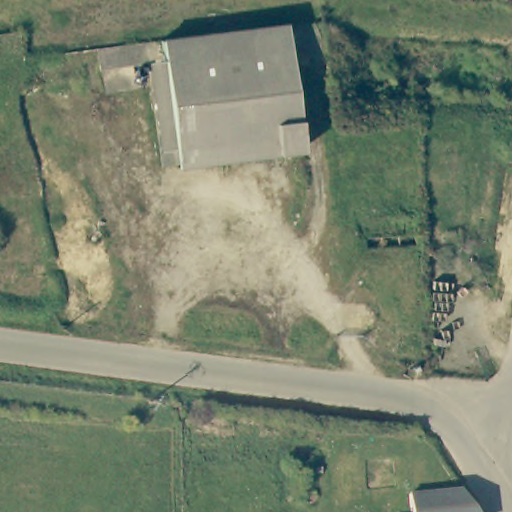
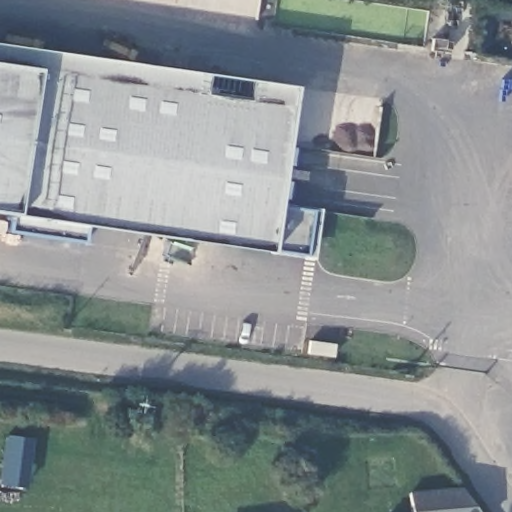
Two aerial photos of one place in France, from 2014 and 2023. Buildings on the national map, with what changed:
demolished [(302,148),(276,151),(273,134),(174,147),(162,57),(160,40),(236,30),(238,48),(287,41),(302,148)]
new [(294,86),(277,203),(311,209),(303,256),(270,250),(89,224),(85,241),(9,230),(12,213),(0,212),(0,44),(294,86)]
new [(32,436),(26,488),(0,485),(0,471),(6,435),(32,436)]
unchanged [(463,487),(479,512),(412,512),(410,491),(463,487)]

